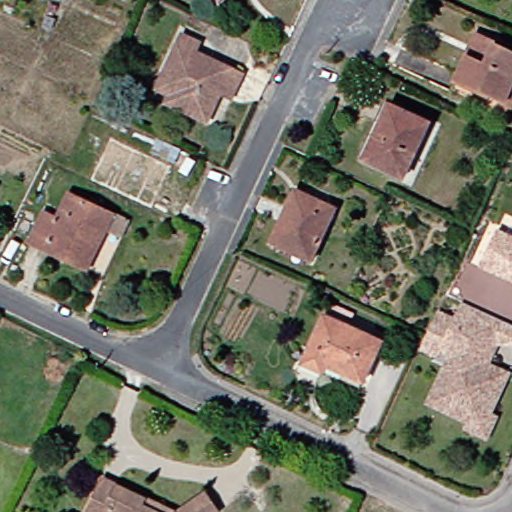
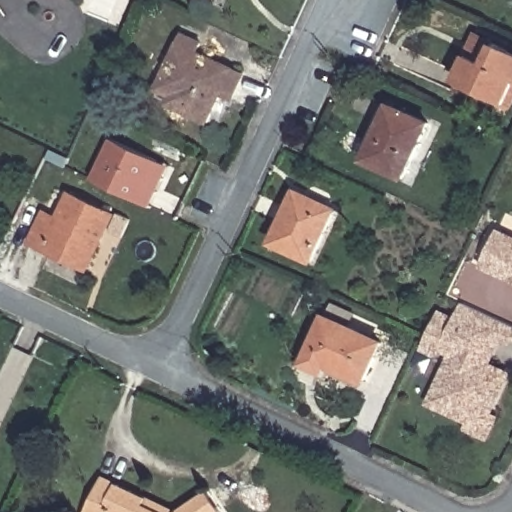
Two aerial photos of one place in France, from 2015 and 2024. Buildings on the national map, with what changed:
unchanged [(72,1),(71,0),(73,0),(72,1)]
unchanged [(163,87),(187,34),(207,43),(203,53),(246,74),(238,92),(236,100),(225,95),(212,125),(186,113),(171,107),(177,93),(163,87)]
unchanged [(455,91),(470,57),(479,36),(485,38),(512,50),(512,106),(508,115),(455,91)]
unchanged [(408,176),(370,158),(395,104),(432,122),(408,176)]
new [(154,193),(147,209),(88,181),(107,139),(153,161),(166,167),(154,193)]
unchanged [(169,145),(180,150),(174,164),(153,154),(159,140),(169,145)]
unchanged [(340,210),(316,263),(277,246),(302,193),(340,210)]
unchanged [(82,265),(32,240),(45,212),(60,219),(71,194),(113,215),(106,230),(88,268),(82,265)]
unchanged [(131,217),(122,235),(110,230),(118,212),(131,217)]
unchanged [(482,268),(499,231),(512,237),(512,281),(510,280),(482,268)]
unchanged [(369,378),(331,361),(326,372),(307,364),(331,313),(387,339),(369,378)]
unchanged [(453,441),(456,435),(425,421),(447,372),(438,368),(429,371),(415,365),(419,357),(431,330),(449,338),(458,320),(512,344),(512,354),(496,360),(493,358),(482,382),(484,383),(493,387),(489,396),(475,427),(482,431),(473,450),(453,441)]
unchanged [(102,479),(104,481),(117,486),(147,500),(173,512),(87,512),(94,496),(102,479)]
unchanged [(180,512),(207,494),(220,512),(180,512)]

